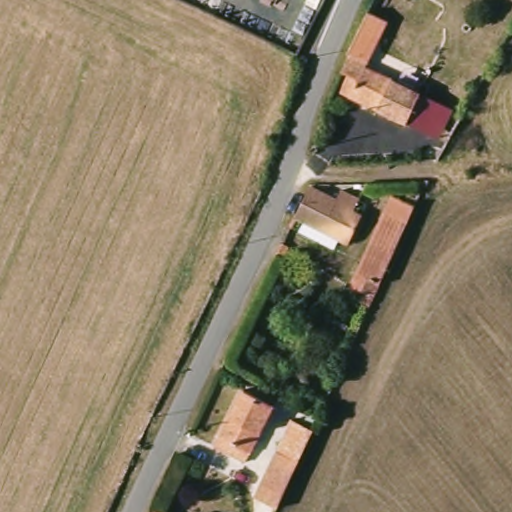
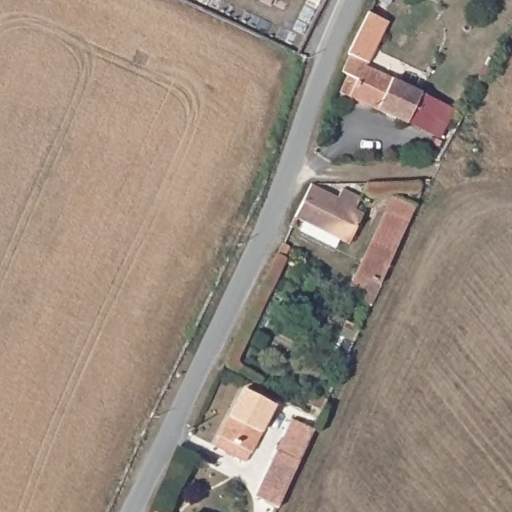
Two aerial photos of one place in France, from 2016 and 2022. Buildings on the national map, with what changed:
unchanged [(350,82),(359,65),(357,64),(366,44),(377,21),(394,29),(383,52),(375,72),(430,102),(414,134),(351,104),(357,86),(352,84),(350,82)]
unchanged [(337,203),(341,192),(355,198),(351,212),(362,217),(348,246),(294,223),(308,191),(337,203)]
unchanged [(353,310),(358,298),(349,292),(392,197),(414,207),(368,317),(353,310)]
unchanged [(219,445),(243,387),(275,402),(251,461),(219,445)]
unchanged [(257,502),(291,423),(312,433),(277,512),(257,502)]

